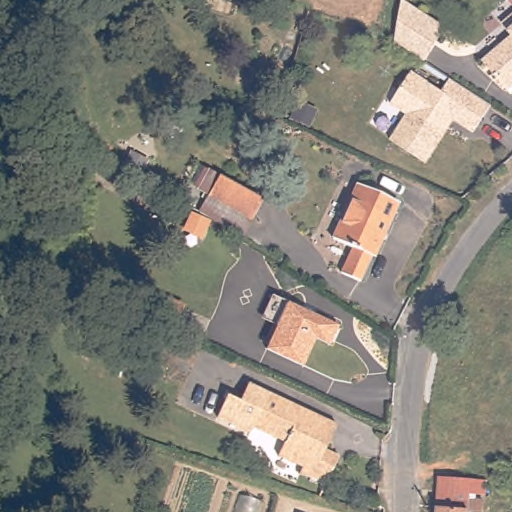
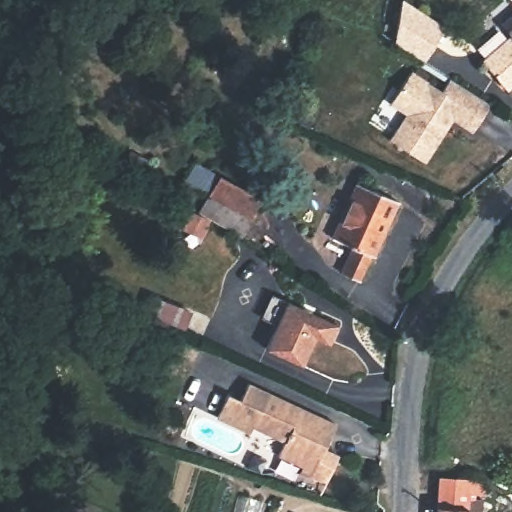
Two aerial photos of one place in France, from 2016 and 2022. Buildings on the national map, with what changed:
unchanged [(436,47),(425,64),(398,46),(403,1),(430,19),(447,30),(436,47)]
unchanged [(508,93),(483,64),(511,40),(507,35),(509,34),(503,28),(512,21),(512,90),(508,93)]
unchanged [(449,118),(444,126),(449,129),(427,165),(392,142),(408,118),(392,105),(413,74),(443,94),(451,80),(492,107),(474,134),(449,118)]
unchanged [(248,237),(210,216),(199,236),(184,228),(204,191),(196,188),(207,170),(268,204),(248,237)]
unchanged [(343,274),(354,247),(333,238),(357,184),(399,201),(376,257),(372,255),(359,282),(343,274)]
unchanged [(290,300),(338,322),(330,339),(317,334),(304,362),(270,346),(290,300)]
unchanged [(244,399),(253,383),(340,424),(328,448),(334,452),(338,463),(328,484),(303,473),(307,466),(282,454),(288,440),(258,426),(255,431),(221,415),(232,393),(244,399)]
unchanged [(437,509),(437,491),(438,479),(486,482),(485,511),(467,510),(467,512),(437,512),(437,509)]

